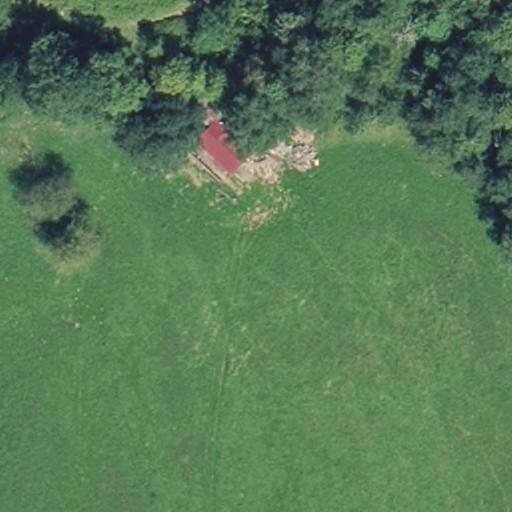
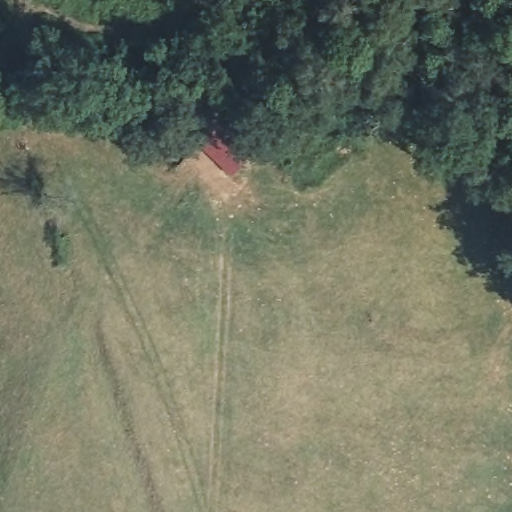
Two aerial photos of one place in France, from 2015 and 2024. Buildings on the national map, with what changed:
unchanged [(212,130),(244,157),(224,177),(192,149),(212,130)]

